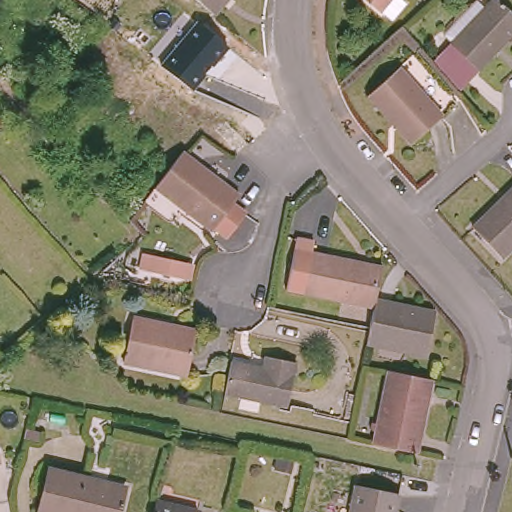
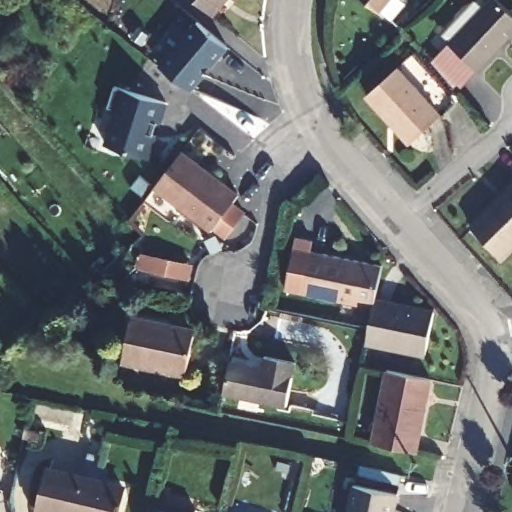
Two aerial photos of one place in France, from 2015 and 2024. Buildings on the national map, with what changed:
unchanged [(198,0),(214,0),(207,8),(198,0)]
unchanged [(375,0),(388,0),(383,6),(375,0)]
unchanged [(510,33),(477,66),(449,37),(487,0),(499,0),(512,13),(512,34),(510,33)]
unchanged [(160,65),(199,23),(230,49),(195,91),(160,65)]
unchanged [(441,114),(412,140),(369,92),(397,65),(441,114)]
new [(112,87),(164,102),(157,123),(155,122),(152,135),(154,135),(147,159),(95,143),(112,87)]
unchanged [(227,228),(214,219),(212,222),(153,177),(170,155),(181,140),(240,185),(233,193),(246,203),(227,228)]
unchanged [(502,254),(472,224),(512,185),(512,243),(502,254)]
unchanged [(370,306),(300,290),(308,248),(380,265),(372,298),(370,306)]
unchanged [(430,310),(422,352),(364,340),(366,328),(370,306),(372,298),(430,310)]
unchanged [(196,325),(187,369),(125,357),(132,313),(196,325)]
unchanged [(292,360),(282,404),(220,391),(226,359),(258,366),(261,353),(292,360)]
unchanged [(425,380),(412,450),(378,443),(392,372),(425,380)]
unchanged [(0,456),(0,437),(5,455),(0,456)]
unchanged [(34,510),(44,468),(82,477),(73,512),(40,512),(34,510)]
unchanged [(82,477),(120,486),(114,512),(73,512),(82,477)]
unchanged [(399,492),(394,512),(350,512),(355,484),(399,492)]
unchanged [(192,508),(191,512),(148,512),(151,498),(192,508)]

